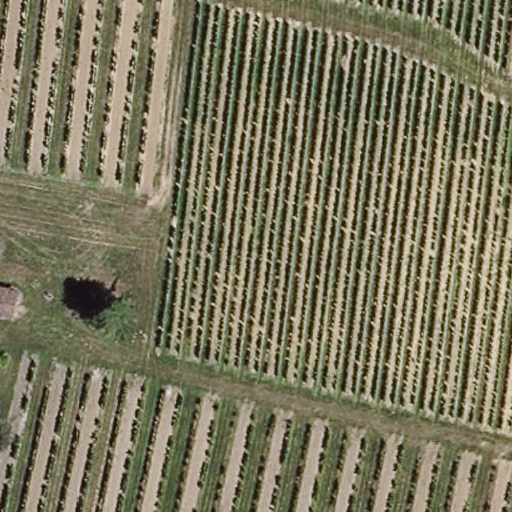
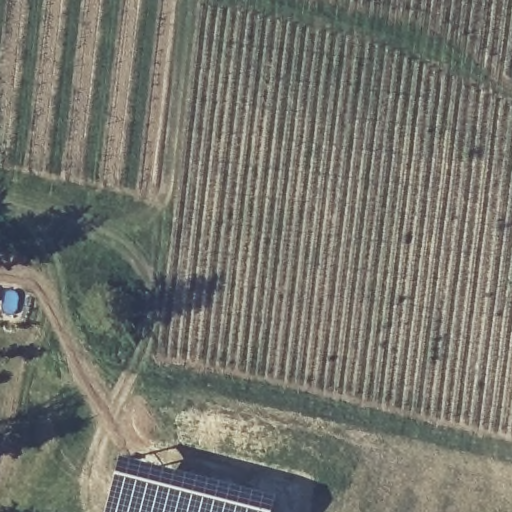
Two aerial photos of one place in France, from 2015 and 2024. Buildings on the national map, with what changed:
unchanged [(16,298),(0,295),(0,268),(20,273),(16,298)]
new [(106,508),(117,458),(158,469),(204,478),(275,497),(271,512),(112,512),(113,510),(106,508)]

